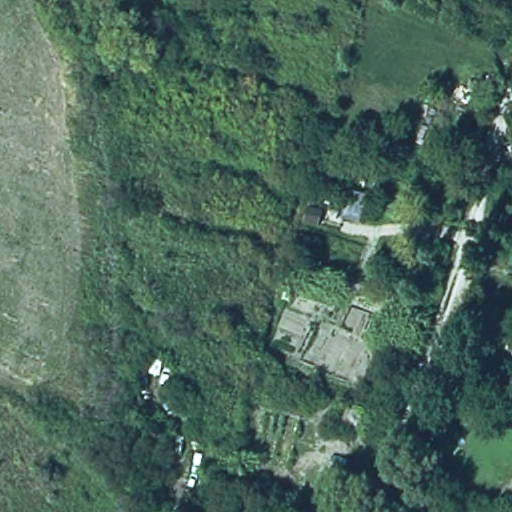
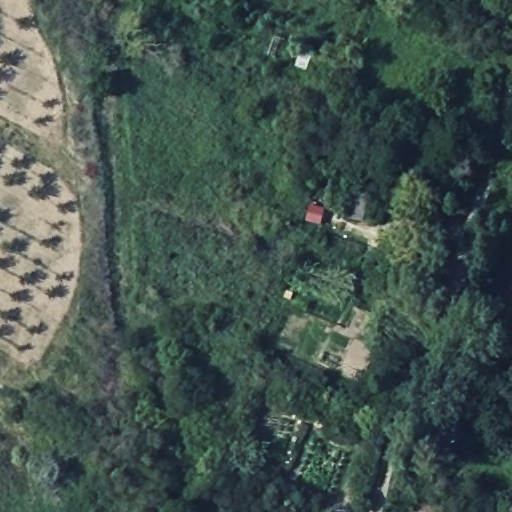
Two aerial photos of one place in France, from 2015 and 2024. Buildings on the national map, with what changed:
unchanged [(361,71),(376,76),(361,117),(349,109),(361,71)]
unchanged [(379,411),(371,438),(340,426),(347,400),(379,411)]

